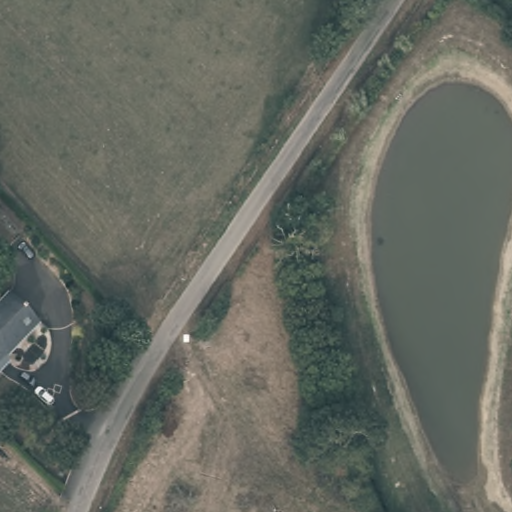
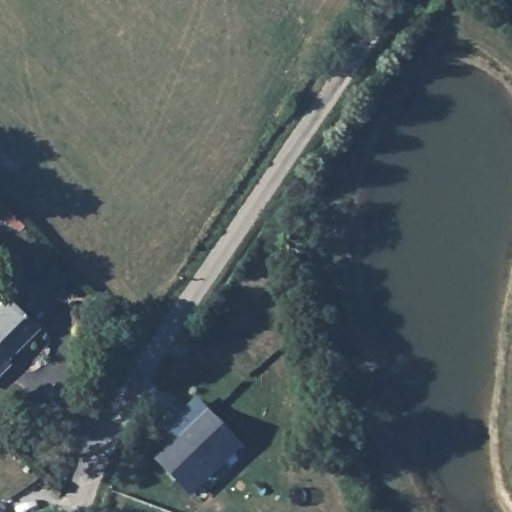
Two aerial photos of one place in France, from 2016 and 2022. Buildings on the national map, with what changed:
unchanged [(0,364),(0,307),(8,299),(38,326),(0,364)]
unchanged [(0,376),(0,373),(2,374),(0,376)]
new [(212,464),(215,468),(195,489),(168,462),(187,442),(183,438),(172,427),(197,401),(209,413),(235,439),(212,464)]
new [(0,511),(1,512),(0,512),(0,511)]

